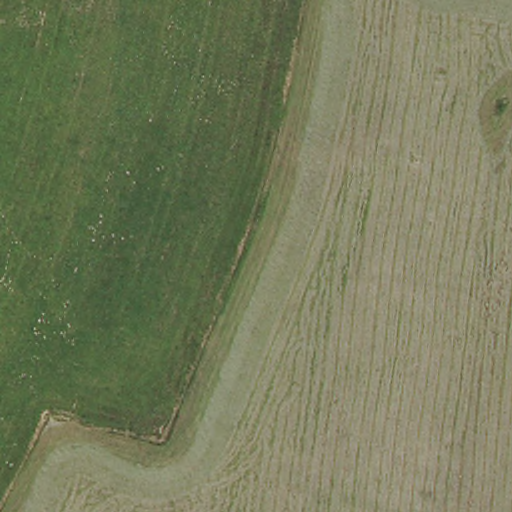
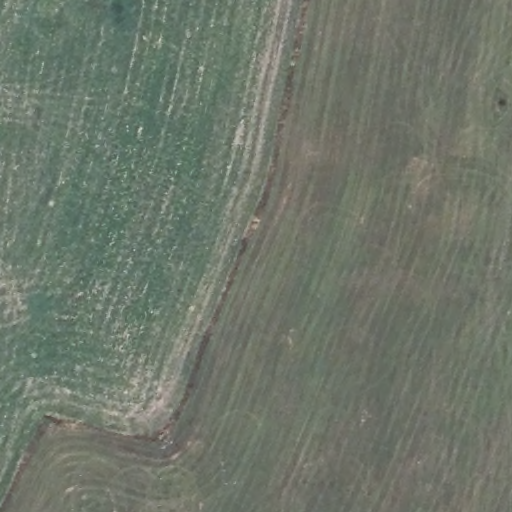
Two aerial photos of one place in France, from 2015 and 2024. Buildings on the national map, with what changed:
[]

